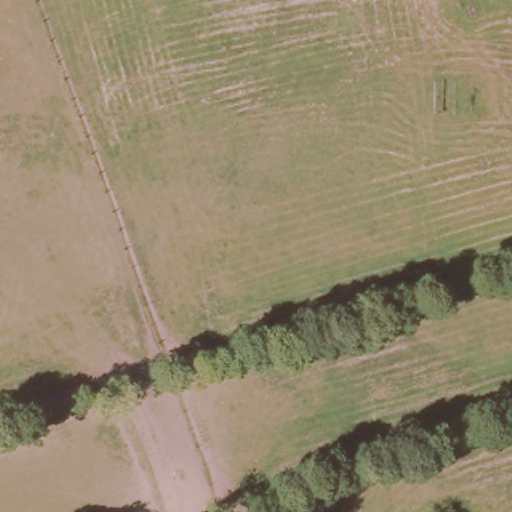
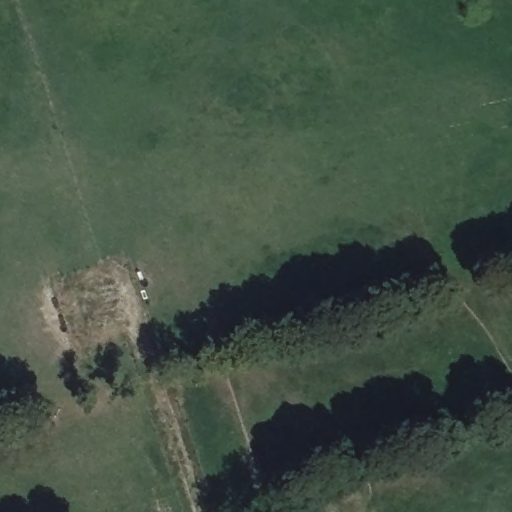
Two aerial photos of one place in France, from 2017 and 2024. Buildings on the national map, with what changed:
unchanged [(307,490),(331,486),(337,512),(312,512),(307,490)]

